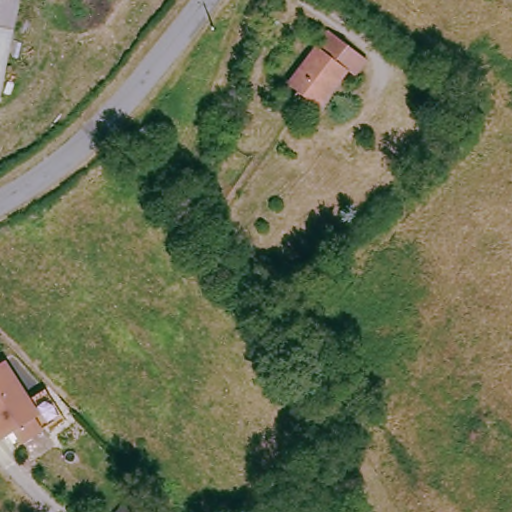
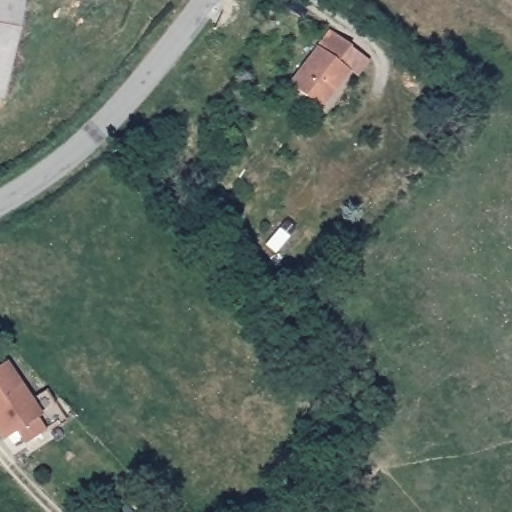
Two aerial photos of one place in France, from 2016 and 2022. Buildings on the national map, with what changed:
unchanged [(1,100),(0,100),(0,0),(21,0),(1,100)]
unchanged [(288,85),(328,31),(349,46),(366,57),(351,77),(346,73),(319,109),(288,85)]
unchanged [(44,414),(3,441),(0,437),(0,367),(9,361),(44,414)]
unchanged [(134,512),(151,496),(165,512),(134,512)]

